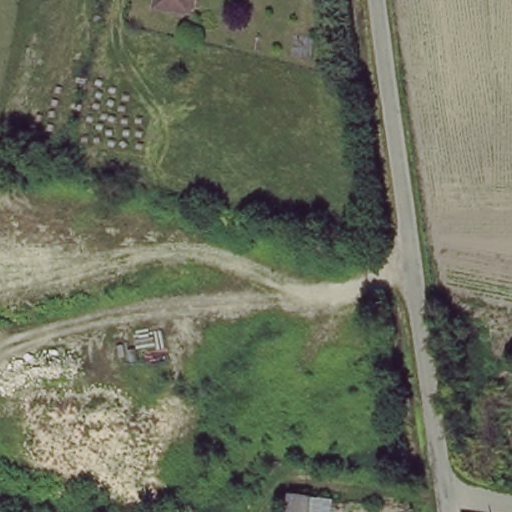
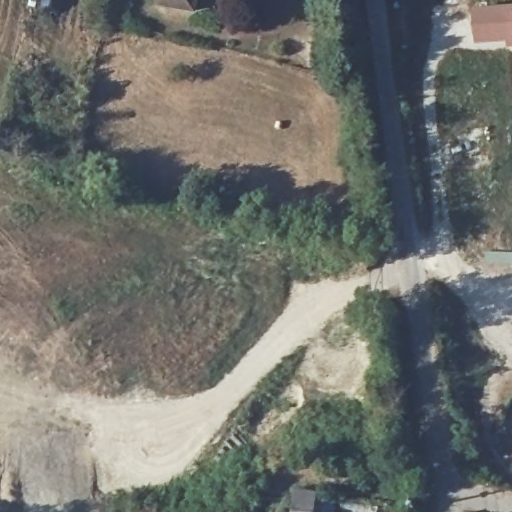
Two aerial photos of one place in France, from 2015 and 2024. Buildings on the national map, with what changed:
unchanged [(161,5),(162,0),(196,0),(194,10),(161,5)]
new [(512,5),(512,48),(509,48),(507,42),(477,44),(474,8),(512,5)]
new [(483,249),(512,250),(512,265),(483,263),(483,249)]
unchanged [(296,490),(320,493),(319,512),(294,512),(296,490)]

